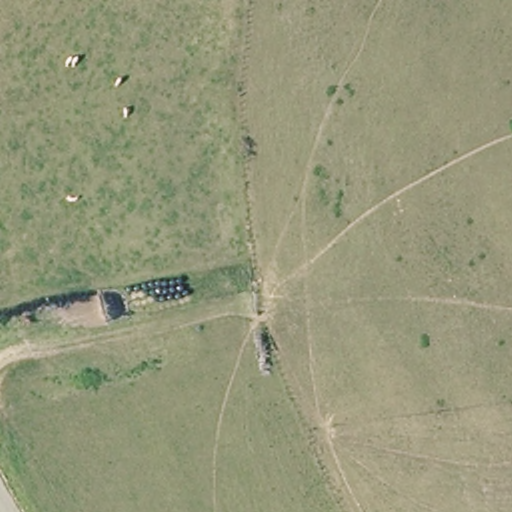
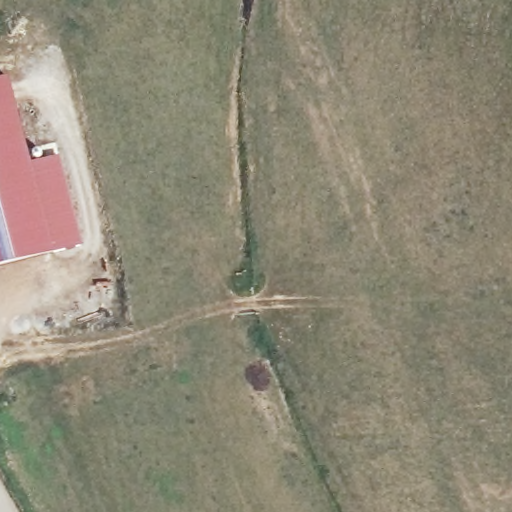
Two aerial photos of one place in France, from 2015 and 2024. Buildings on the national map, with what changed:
new [(32,163),(60,155),(84,246),(0,268),(0,79),(9,77),(32,163)]

